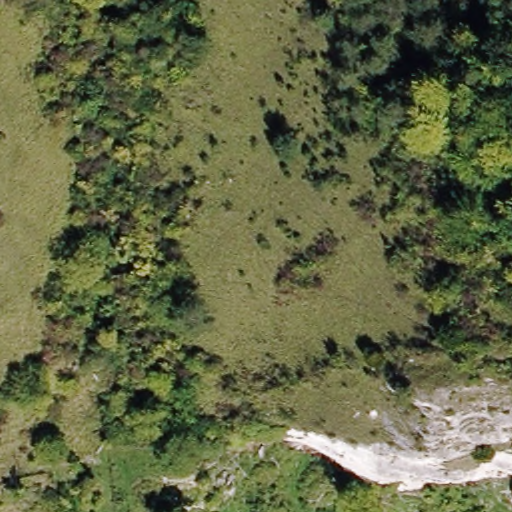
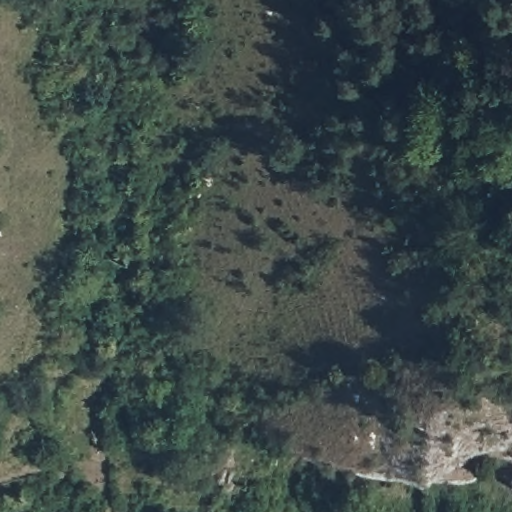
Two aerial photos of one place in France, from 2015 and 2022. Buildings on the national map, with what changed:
[]

